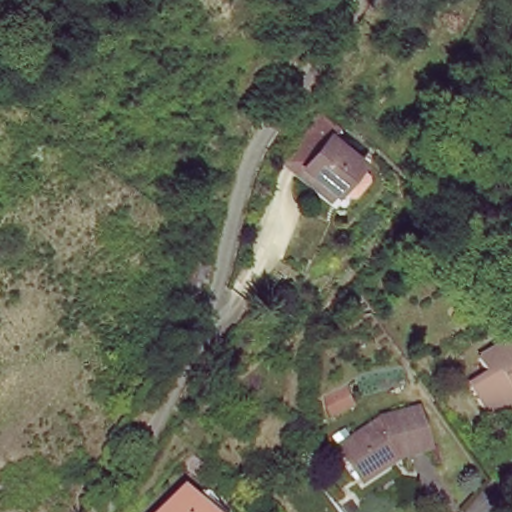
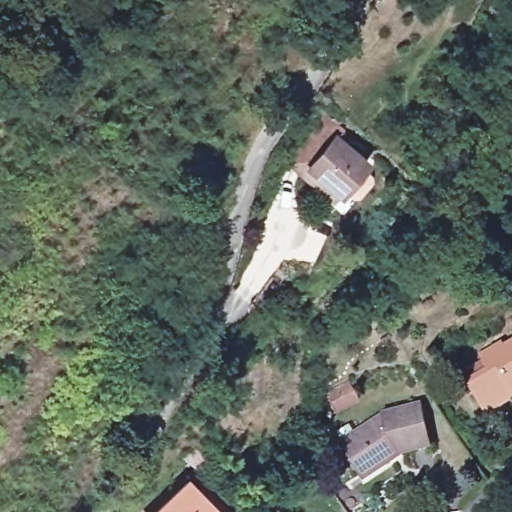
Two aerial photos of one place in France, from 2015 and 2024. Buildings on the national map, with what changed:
unchanged [(338,123),(352,135),(344,144),(312,182),(298,169),(338,123)]
unchanged [(325,192),(312,182),(344,144),(376,171),(349,202),(344,209),(325,192)]
unchanged [(469,380),(488,367),(479,355),(512,332),(512,392),(489,407),(469,380)]
unchanged [(384,405),(417,396),(428,440),(402,446),(365,470),(341,436),(384,405)]
unchanged [(181,482),(199,500),(191,509),(195,512),(154,512),(181,482)]

